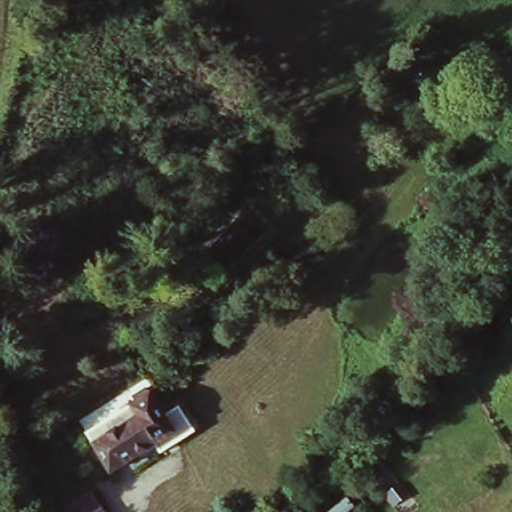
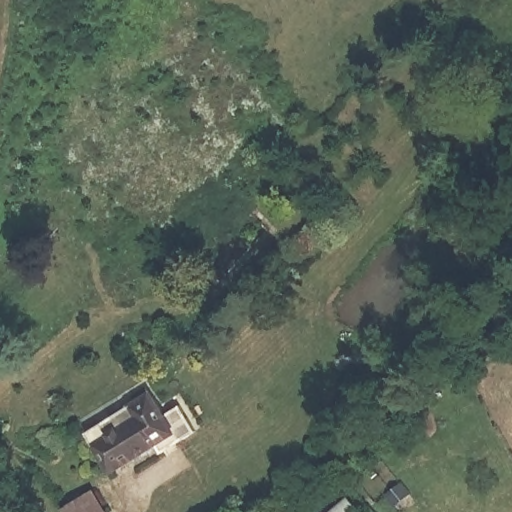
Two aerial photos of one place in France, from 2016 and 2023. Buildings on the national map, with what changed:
unchanged [(149,398),(162,422),(177,415),(187,437),(154,455),(150,446),(114,465),(92,428),(149,398)]
unchanged [(71,512),(69,507),(99,492),(109,512),(71,512)]
unchanged [(361,512),(337,512),(352,500),(361,512)]

